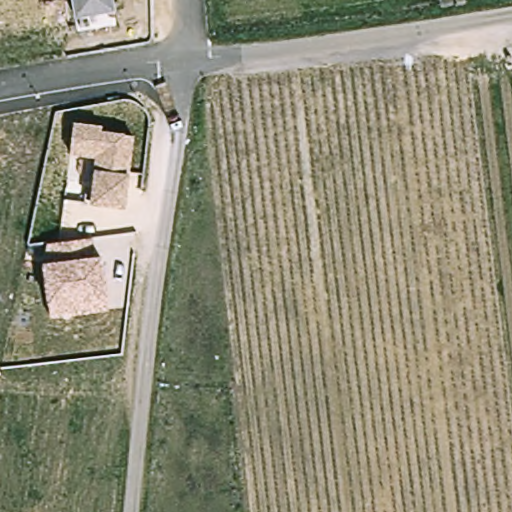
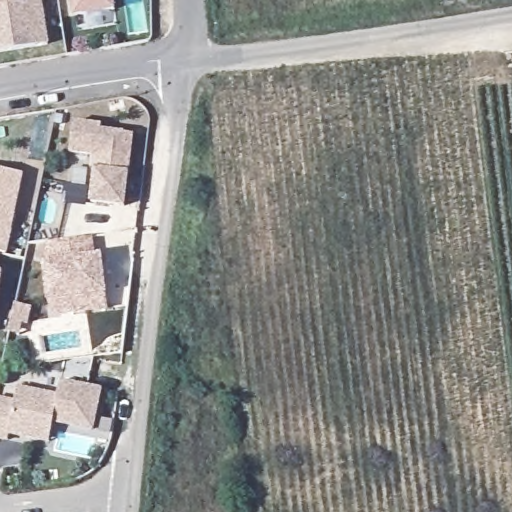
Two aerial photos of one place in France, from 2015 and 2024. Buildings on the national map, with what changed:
unchanged [(75,16),(72,0),(112,0),(114,9),(75,16)]
new [(43,2),(51,46),(0,56),(0,10),(43,2)]
unchanged [(101,131),(131,134),(127,174),(125,209),(90,204),(94,169),(95,156),(71,152),(73,122),(101,125),(101,131)]
new [(24,174),(10,231),(0,229),(0,169),(24,174)]
unchanged [(100,255),(105,295),(106,310),(48,317),(47,303),(41,262),(50,262),(46,244),(90,239),(100,255)]
new [(5,273),(0,293),(0,272),(5,273)]
new [(35,309),(29,339),(13,335),(20,306),(35,309)]
new [(14,399),(17,389),(58,396),(61,382),(101,389),(92,429),(39,419),(36,441),(9,434),(7,441),(0,439),(0,397),(14,399)]

